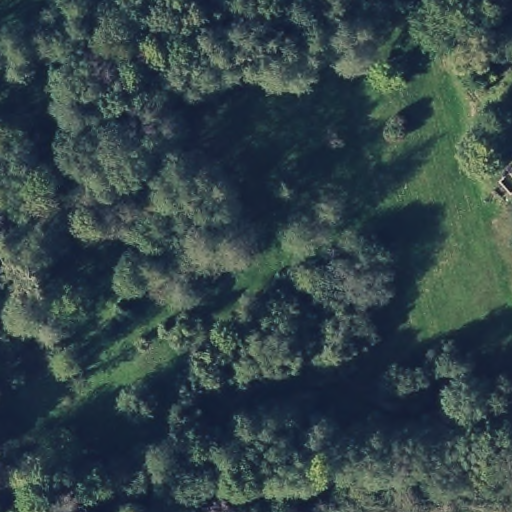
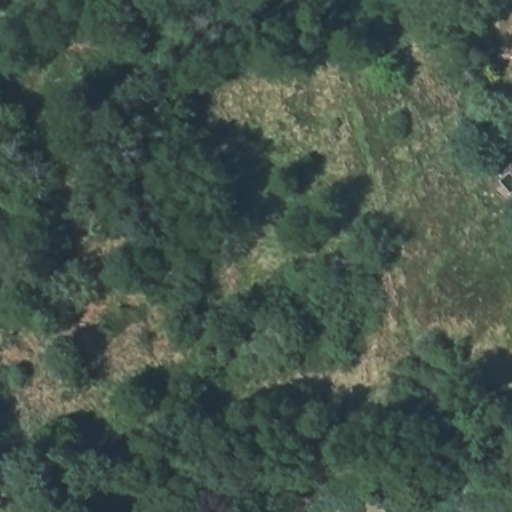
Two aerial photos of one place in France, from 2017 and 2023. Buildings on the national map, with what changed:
[]

